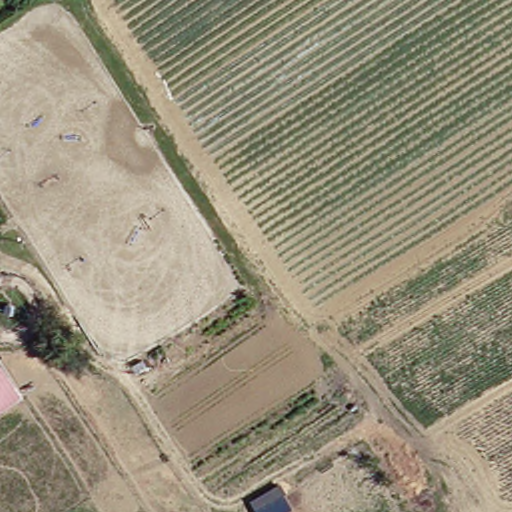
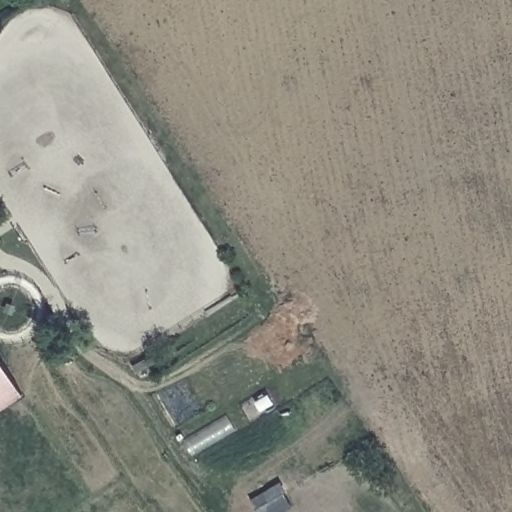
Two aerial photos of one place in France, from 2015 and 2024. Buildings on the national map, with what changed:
unchanged [(29,396),(0,414),(0,352),(29,396)]

